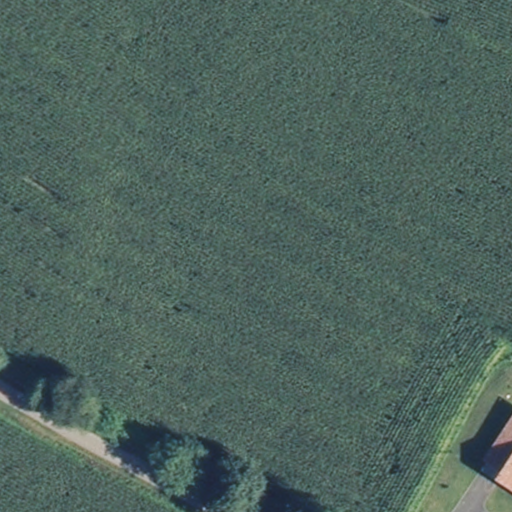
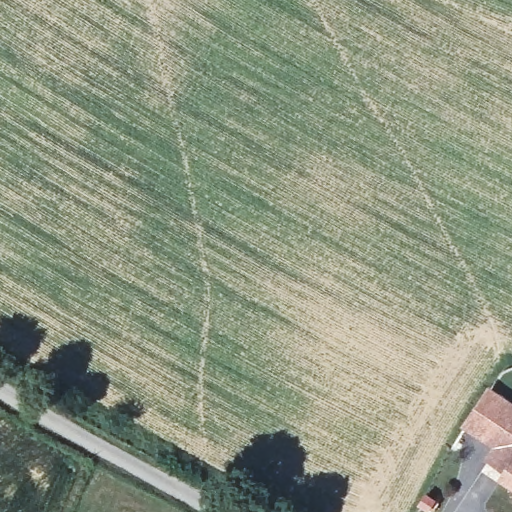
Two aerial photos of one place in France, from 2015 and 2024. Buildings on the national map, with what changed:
new [(461,425),(490,382),(512,399),(512,422),(505,433),(496,447),(461,425)]
unchanged [(500,478),(504,472),(487,460),(505,433),(512,422),(512,487),(500,478)]

